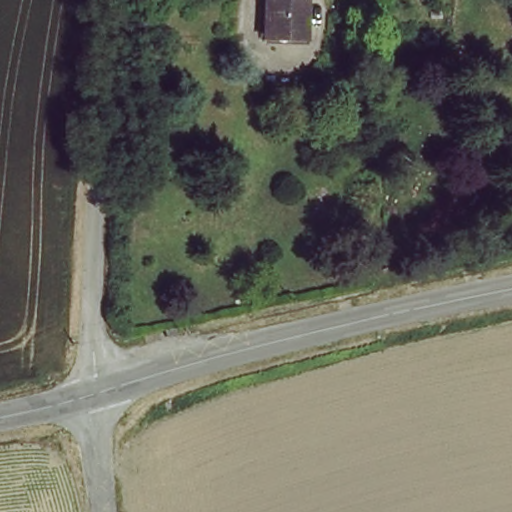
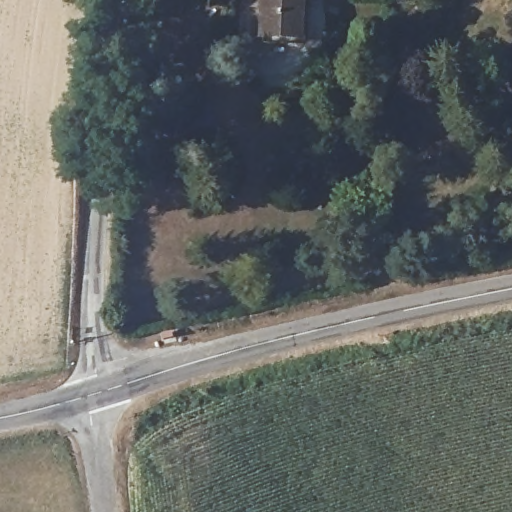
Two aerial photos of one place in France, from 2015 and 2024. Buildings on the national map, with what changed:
unchanged [(266,43),(268,0),(304,0),(301,44),(266,43)]

